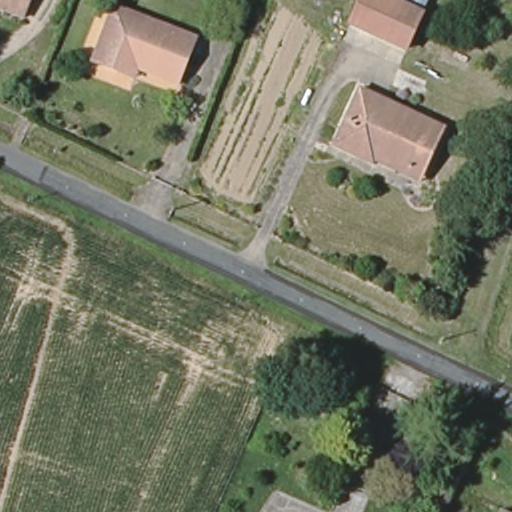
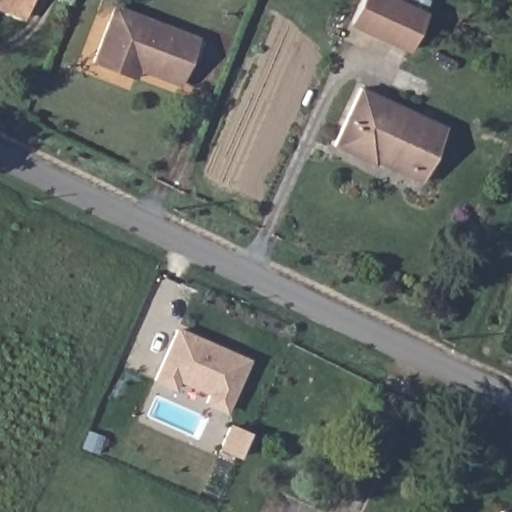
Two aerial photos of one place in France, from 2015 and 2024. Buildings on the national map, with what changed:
unchanged [(0,9),(0,0),(30,0),(23,18),(0,9)]
unchanged [(362,0),(422,0),(429,3),(424,15),(408,53),(350,28),(362,0)]
unchanged [(117,71),(94,62),(116,8),(196,39),(178,85),(136,69),(133,78),(117,71)]
unchanged [(372,164),(334,145),(360,89),(444,129),(423,173),(419,182),(374,161),(372,164)]
new [(180,332),(250,363),(228,413),(209,405),(213,395),(181,381),(177,390),(158,381),(180,332)]
unchanged [(502,512),(498,512),(499,511),(502,512)]

